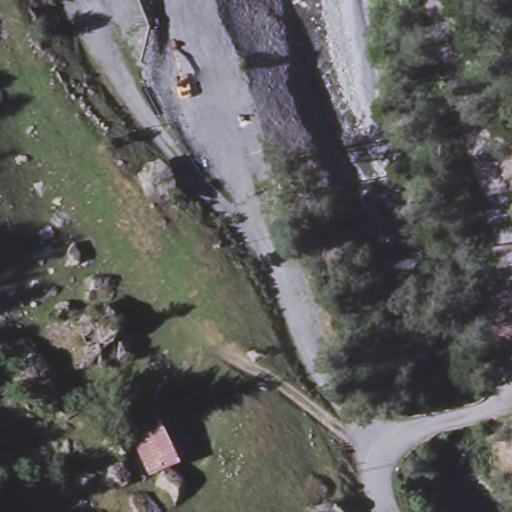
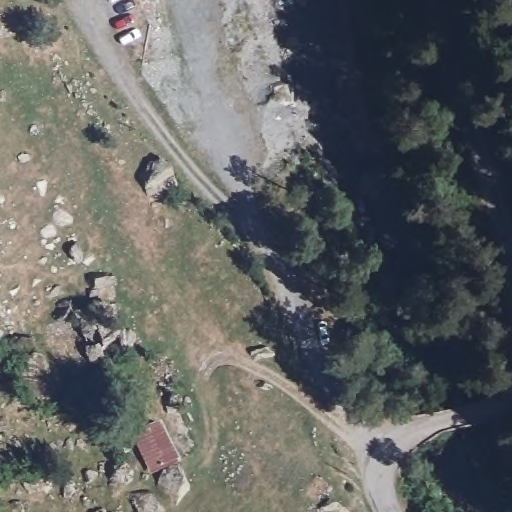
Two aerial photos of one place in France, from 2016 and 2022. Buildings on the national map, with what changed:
unchanged [(131,440),(164,426),(174,448),(183,466),(149,480),(131,440)]

